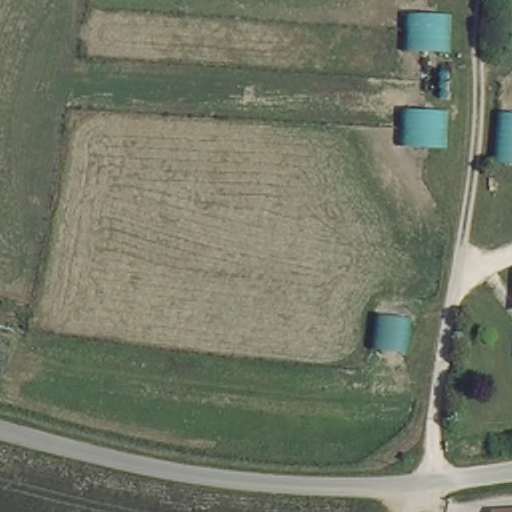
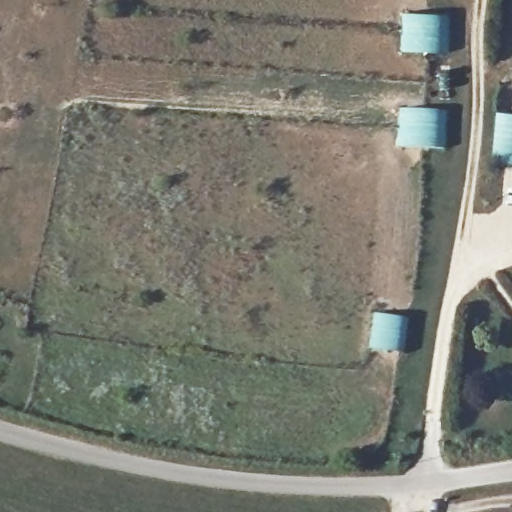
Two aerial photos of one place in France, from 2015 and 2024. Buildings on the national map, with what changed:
unchanged [(440,52),(399,50),(404,7),(445,10),(440,52)]
unchanged [(398,145),(400,103),(444,105),(441,146),(398,145)]
unchanged [(498,108),(512,108),(512,162),(493,160),(498,108)]

